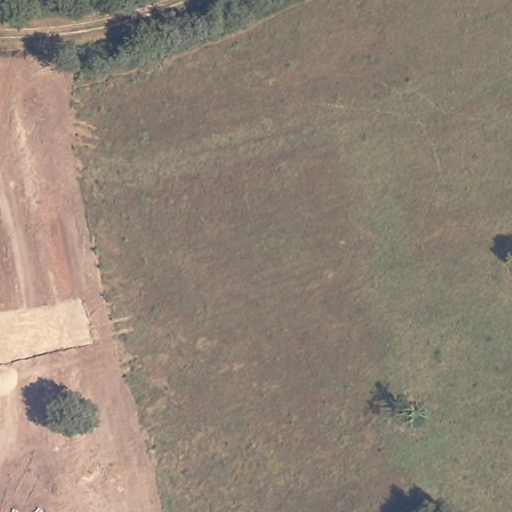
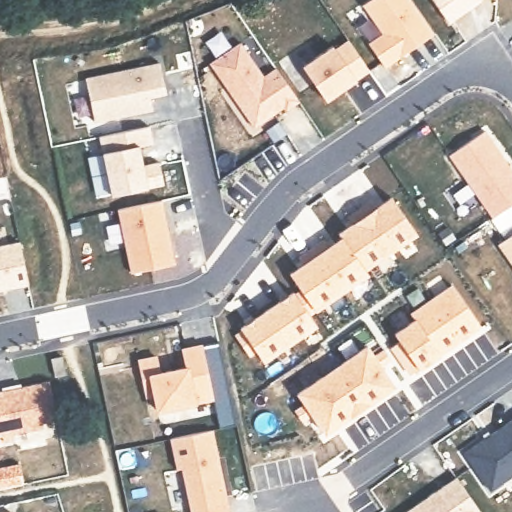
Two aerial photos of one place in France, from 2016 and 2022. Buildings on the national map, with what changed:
new [(369,0),(412,0),(435,33),(386,67),(369,43),(384,33),(364,4),(369,0)]
new [(450,22),(434,0),(482,0),(479,2),(470,9),(450,22)]
new [(333,45),(336,49),(349,40),(370,70),(327,100),(304,65),(333,45)]
new [(241,41),(264,75),(277,67),(300,101),(287,110),(284,107),(255,127),(210,62),(241,41)]
new [(160,62),(166,93),(151,96),(154,109),(96,121),(86,77),(160,62)]
new [(150,125),(153,142),(140,145),(143,165),(160,161),(164,184),(113,194),(100,136),(150,125)]
new [(485,130),(512,169),(512,204),(493,217),(450,154),(485,130)]
new [(367,269),(371,274),(309,314),(318,326),(265,363),(257,350),(250,356),(234,333),(241,327),(294,289),(297,293),(301,290),(289,272),(341,237),(337,231),(393,193),(419,234),(367,269)]
new [(169,230),(170,236),(176,263),(131,272),(118,209),(162,199),(169,230)]
new [(512,235),(512,262),(500,243),(512,235)]
new [(0,291),(0,244),(20,240),(30,284),(0,291)]
new [(442,355),(421,370),(418,367),(409,375),(389,349),(400,340),(396,333),(415,319),(410,314),(453,283),(483,327),(442,355)]
new [(384,368),(397,388),(326,435),(296,394),(368,343),(374,352),(384,347),(393,360),(384,368)]
new [(156,355),(160,371),(187,365),(183,348),(202,344),(214,397),(158,409),(155,394),(146,396),(139,359),(156,355)]
new [(41,424),(43,428),(13,434),(15,439),(2,442),(1,435),(0,436),(0,390),(50,381),(59,420),(41,424)]
new [(512,421),(512,476),(491,491),(465,453),(512,421)]
new [(191,512),(182,467),(177,468),(171,437),(213,428),(227,496),(231,511),(228,512),(191,512)]
new [(458,477),(482,512),(407,512),(436,492),(443,487),(458,477)]
unchanged [(14,512),(0,512),(14,509),(14,512)]

